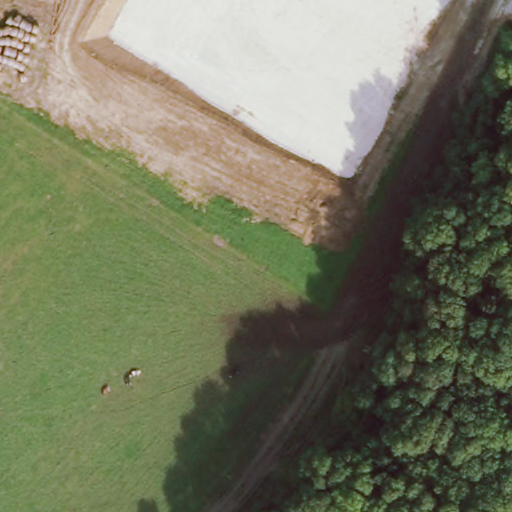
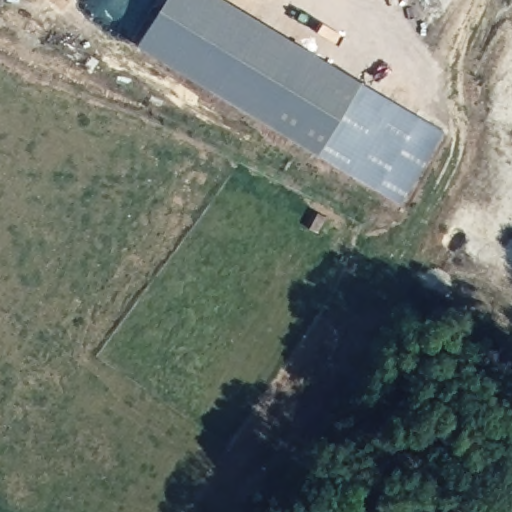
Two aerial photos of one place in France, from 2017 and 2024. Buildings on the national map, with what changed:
new [(164,0),(206,0),(442,137),(399,207),(134,48),(164,0)]

